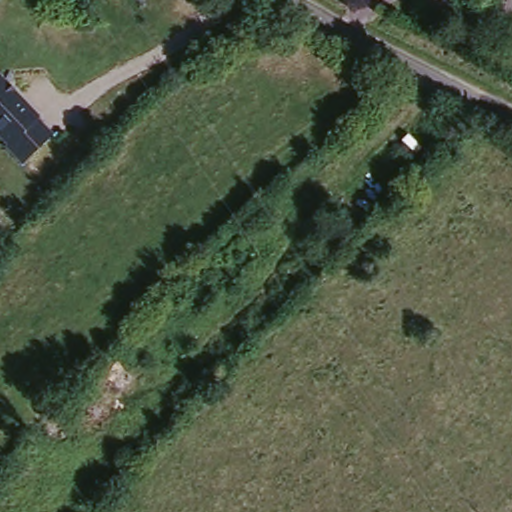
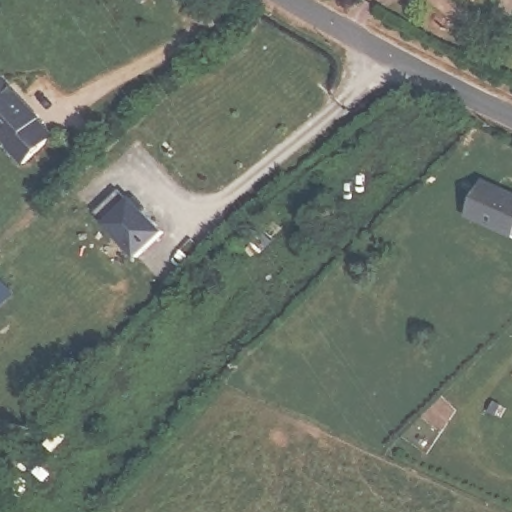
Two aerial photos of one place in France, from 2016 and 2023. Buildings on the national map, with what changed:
unchanged [(32,116),(48,138),(19,161),(3,145),(6,142),(0,135),(0,75),(35,115),(32,116)]
new [(484,174),(506,184),(512,187),(512,231),(468,210),(484,178),(484,174)]
new [(117,186),(128,197),(130,195),(161,229),(135,252),(93,207),(117,186)]
new [(0,304),(0,276),(14,290),(0,304)]

